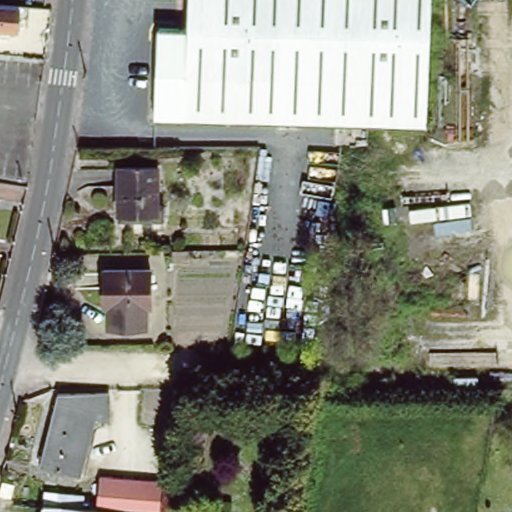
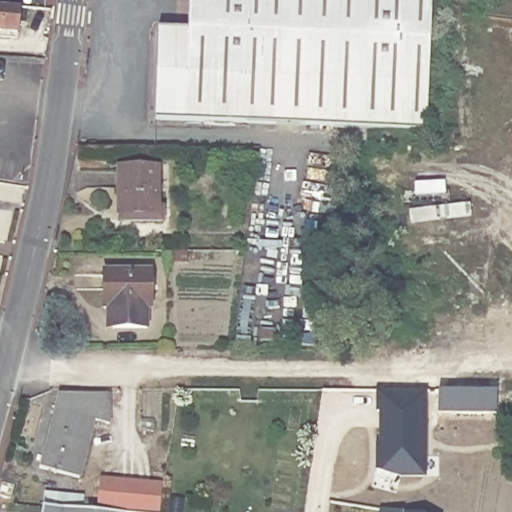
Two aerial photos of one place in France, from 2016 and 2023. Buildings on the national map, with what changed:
unchanged [(157,119),(161,30),(188,31),(189,0),(431,0),(427,130),(157,119)]
unchanged [(19,34),(13,33),(13,38),(3,37),(4,32),(0,32),(0,4),(23,6),(19,34)]
unchanged [(162,167),(162,214),(123,214),(123,167),(162,167)]
unchanged [(186,261),(171,261),(171,250),(186,250),(186,261)]
unchanged [(112,307),(108,307),(108,271),(156,271),(156,308),(152,308),(152,327),(118,327),(112,327),(112,307)]
unchanged [(109,390),(109,421),(94,417),(80,475),(41,466),(60,390),(109,390)]
new [(398,476),(383,472),(374,470),(374,442),(379,442),(379,411),(376,411),(376,390),(427,390),(427,476),(398,476)]
unchanged [(43,505),(94,510),(98,478),(161,482),(158,512),(41,512),(43,505)]
unchanged [(5,503),(5,500),(8,500),(10,489),(17,490),(15,501),(14,505),(5,503)]
new [(379,507),(408,512),(379,512),(379,507)]

